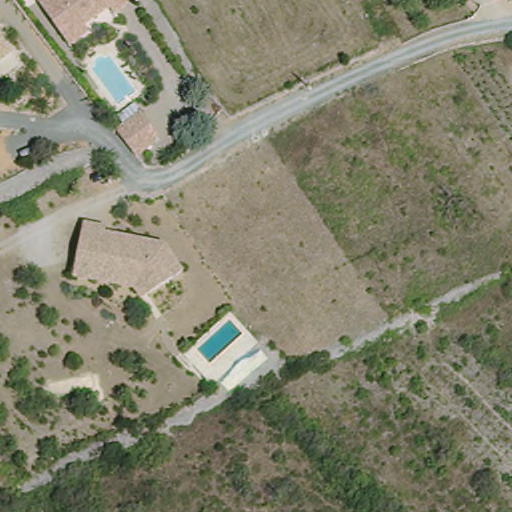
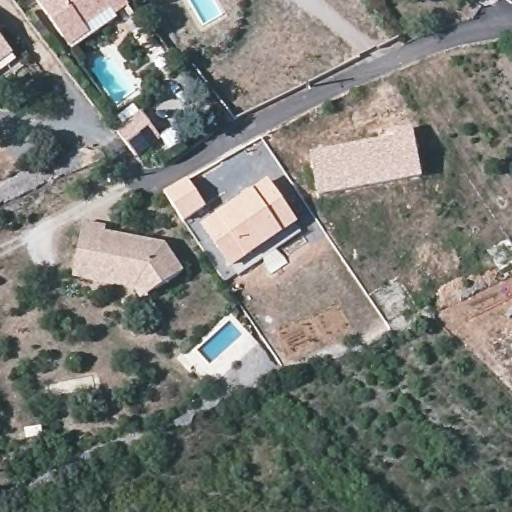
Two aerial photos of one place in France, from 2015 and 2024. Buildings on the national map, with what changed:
unchanged [(65,50),(52,30),(35,0),(113,0),(121,12),(105,23),(97,12),(68,31),(76,41),(65,50)]
unchanged [(0,39),(11,55),(0,63),(0,39)]
unchanged [(160,142),(135,159),(120,131),(140,115),(160,142)]
new [(393,135),(393,132),(412,127),(422,176),(317,197),(309,152),(393,135)]
new [(268,177),(298,224),(229,269),(200,225),(268,177)]
new [(187,179),(205,207),(182,221),(164,192),(187,179)]
unchanged [(162,250),(184,288),(150,308),(138,295),(71,277),(83,230),(162,250)]
unchanged [(509,290),(483,265),(506,254),(512,251),(512,286),(509,290)]

